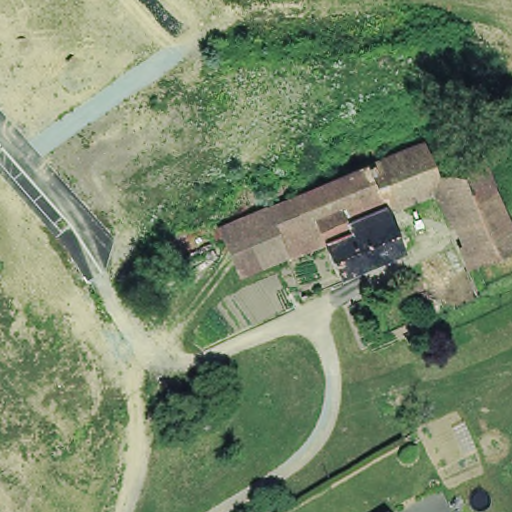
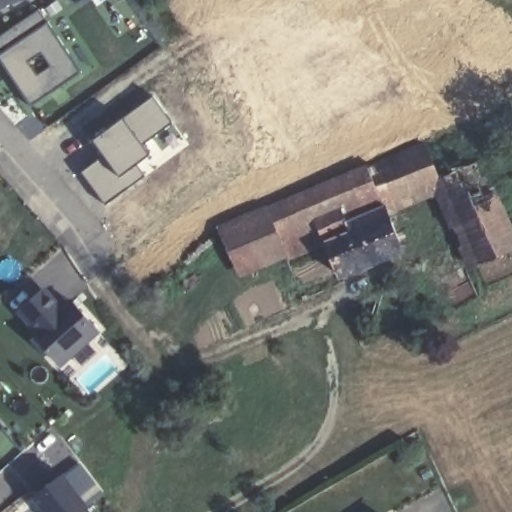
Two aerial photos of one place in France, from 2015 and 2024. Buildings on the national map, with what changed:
new [(0,6),(0,0),(15,0),(0,6)]
new [(48,23),(82,71),(33,106),(0,56),(0,37),(38,10),(48,23)]
new [(153,94),(173,121),(143,145),(122,117),(153,94)]
new [(122,117),(143,145),(150,155),(139,163),(120,176),(102,154),(92,140),(122,117)]
unchanged [(441,169),(443,174),(418,186),(400,145),(425,134),(441,169)]
unchanged [(387,195),(355,210),(359,221),(330,234),(292,249),(290,244),(245,262),(227,219),(400,145),(418,186),(390,198),(387,195)]
unchanged [(482,150),(512,214),(512,240),(481,255),(443,174),(441,169),(482,150)]
new [(102,154),(120,176),(139,163),(147,173),(104,204),(80,171),(102,154)]
unchanged [(330,234),(359,221),(355,210),(387,195),(390,198),(406,238),(343,265),(330,234)]
new [(45,287),(62,305),(71,297),(101,333),(62,368),(32,335),(35,332),(17,312),(45,287)]
new [(0,431),(0,425),(3,428),(0,431)]
new [(87,512),(43,512),(30,496),(63,470),(92,508),(87,512)]

